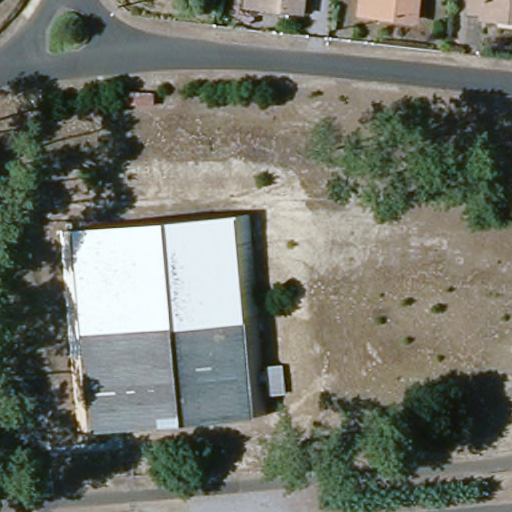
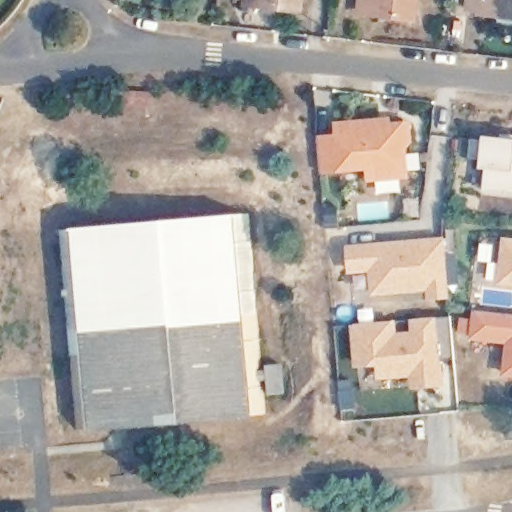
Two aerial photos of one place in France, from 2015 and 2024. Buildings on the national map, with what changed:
unchanged [(248,2),(248,0),(301,0),(300,8),(248,2)]
unchanged [(365,7),(366,0),(421,0),(420,13),(365,7)]
unchanged [(482,11),(470,9),(471,0),(512,0),(512,19),(482,15),(482,11)]
unchanged [(339,136),(338,124),(381,120),(382,125),(410,123),(411,140),(405,149),(407,176),(370,178),(370,167),(322,171),(320,138),(339,136)]
new [(502,142),(503,134),(512,135),(512,193),(486,190),(487,168),(483,167),(484,158),(472,157),(474,139),(502,142)]
new [(370,167),(370,178),(407,176),(405,149),(411,140),(415,190),(366,194),(365,172),(323,176),(322,171),(370,167)]
unchanged [(255,211),(275,413),(85,429),(67,229),(255,211)]
new [(512,287),(497,285),(503,236),(512,238),(512,287)]
new [(450,298),(429,300),(427,292),(371,297),(369,274),(350,275),(346,246),(446,237),(450,298)]
new [(512,314),(512,375),(506,374),(508,351),(473,347),(477,310),(512,314)]
new [(397,320),(398,333),(412,332),(410,319),(451,315),(453,358),(443,359),(445,386),(412,390),(411,377),(378,380),(377,367),(356,370),(351,325),(397,320)]

